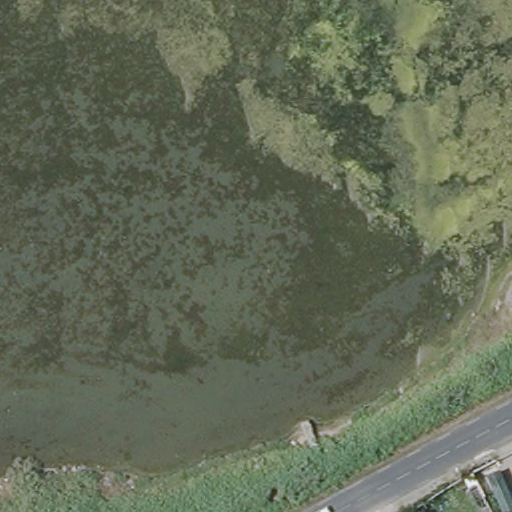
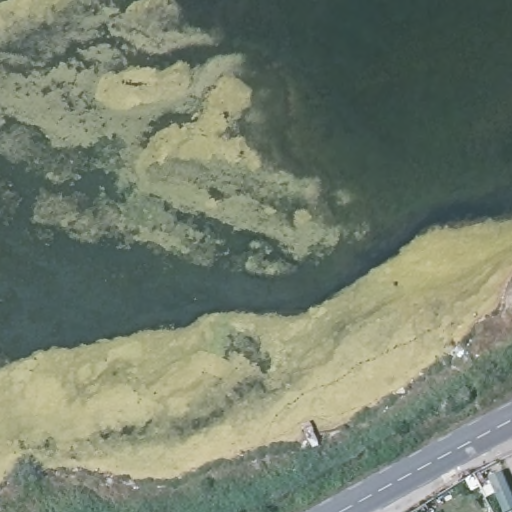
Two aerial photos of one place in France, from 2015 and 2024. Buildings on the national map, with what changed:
unchanged [(485,499),(470,475),(495,463),(506,490),(485,499)]

